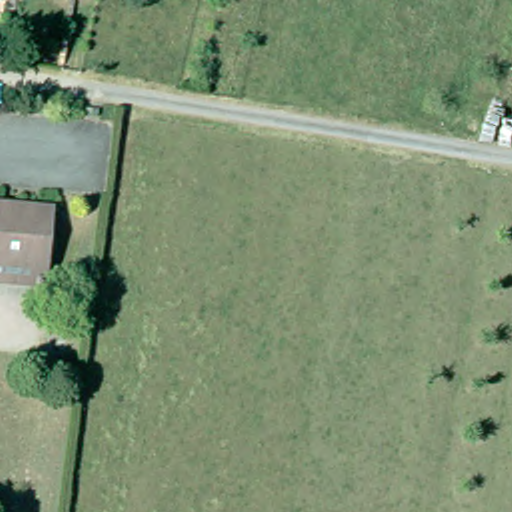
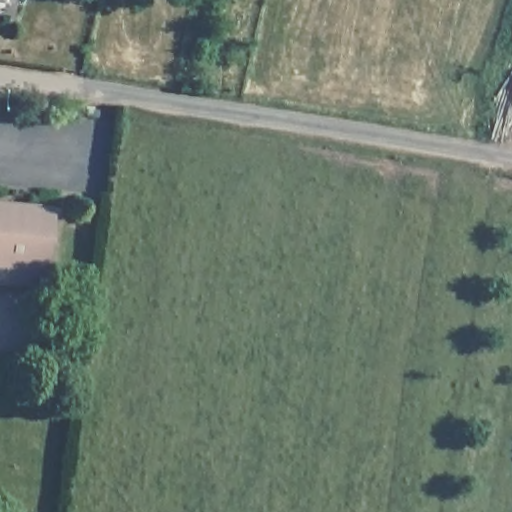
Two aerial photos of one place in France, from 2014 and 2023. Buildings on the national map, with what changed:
unchanged [(0,264),(0,199),(47,202),(42,268),(0,264)]
unchanged [(0,279),(0,264),(42,268),(42,282),(0,279)]

